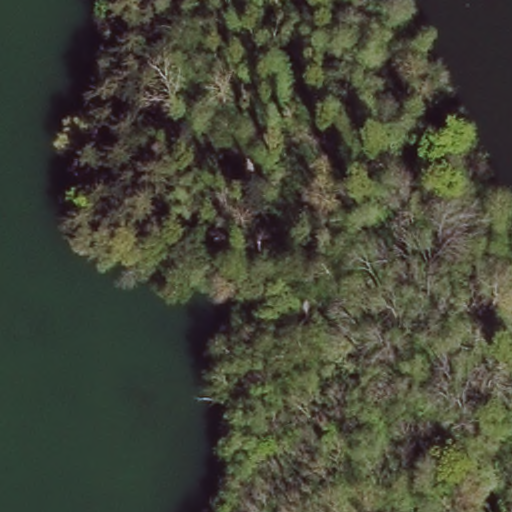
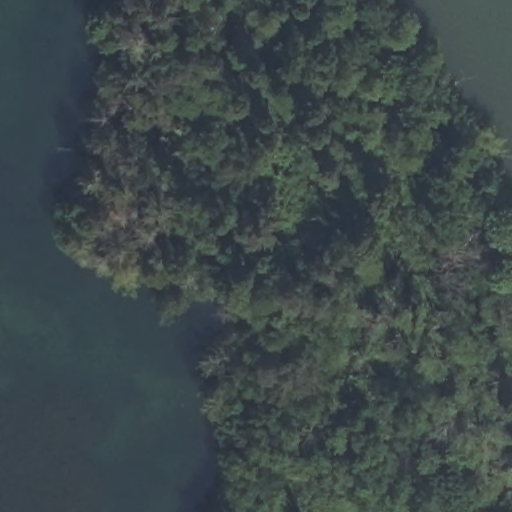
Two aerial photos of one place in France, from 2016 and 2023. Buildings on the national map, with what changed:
[]

